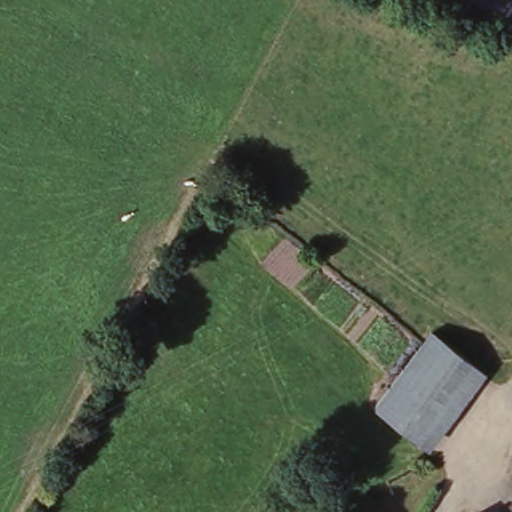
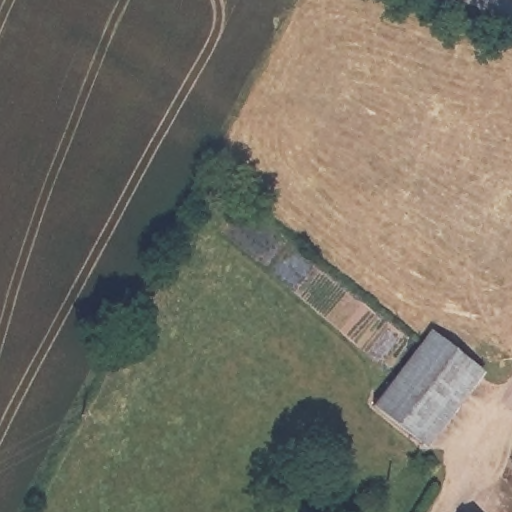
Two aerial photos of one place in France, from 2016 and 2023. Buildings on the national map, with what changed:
unchanged [(429,450),(381,413),(439,340),(487,378),(429,450)]

